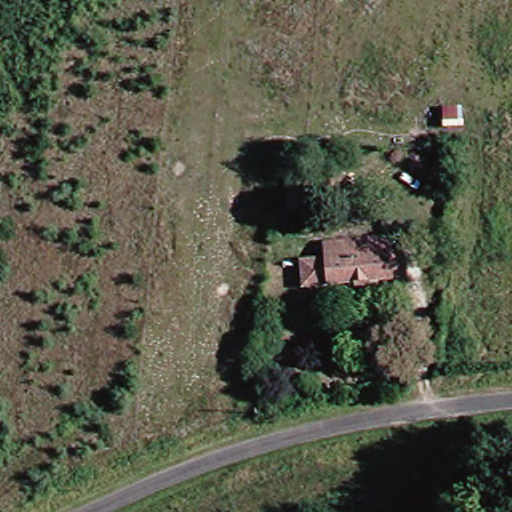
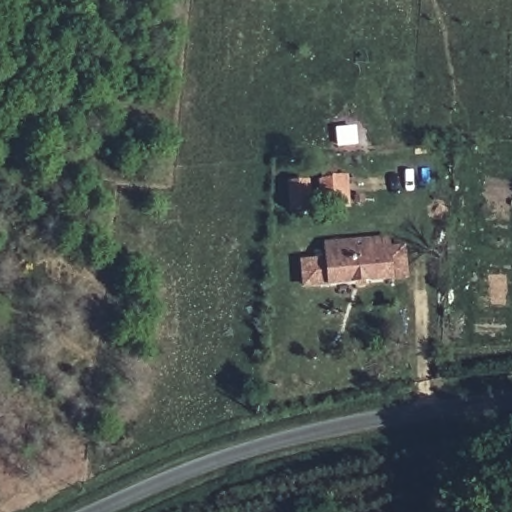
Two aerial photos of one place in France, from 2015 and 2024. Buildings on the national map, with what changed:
unchanged [(352,183),(353,212),(325,214),(324,185),(352,183)]
unchanged [(316,190),(317,215),(294,217),(293,192),(316,190)]
unchanged [(295,264),(320,261),(318,245),(380,240),(380,246),(395,245),(399,278),(383,280),(297,287),(295,264)]

